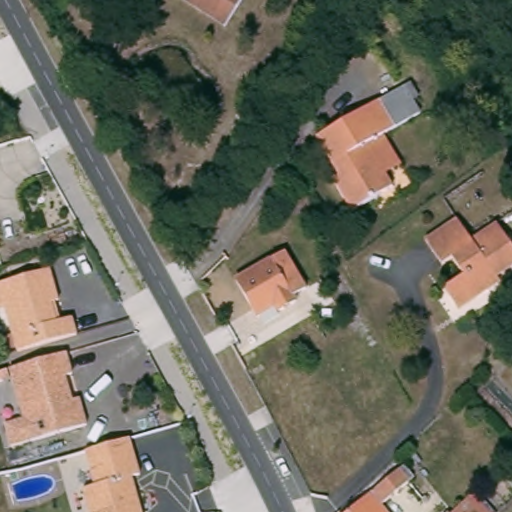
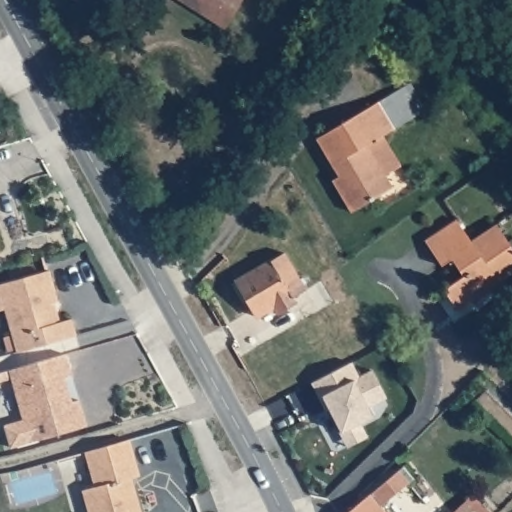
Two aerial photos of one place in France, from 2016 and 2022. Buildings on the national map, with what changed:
unchanged [(222,31),(172,0),(242,0),(222,31)]
unchanged [(387,132),(363,147),(388,185),(347,214),(326,181),(335,174),(314,142),(368,105),(387,132)]
unchanged [(489,288),(445,316),(431,295),(450,282),(439,266),(427,273),(409,247),(451,219),(467,241),(485,230),(494,225),(512,248),(512,260),(509,262),(485,281),(489,288)]
unchanged [(2,251),(0,251),(0,245),(2,251)]
unchanged [(301,281),(287,292),(293,300),(275,314),(268,304),(253,315),(233,281),(277,252),(301,281)]
unchanged [(44,275),(50,306),(42,307),(45,321),(61,317),(67,335),(9,350),(0,313),(0,287),(44,275)]
unchanged [(2,373),(65,356),(68,377),(60,381),(66,402),(76,400),(82,427),(23,443),(2,373)]
new [(330,407),(327,409),(321,397),(313,382),(353,362),(360,376),(373,369),(387,397),(369,406),(374,415),(361,421),(368,435),(348,445),(340,430),(341,429),(330,407)]
unchanged [(79,453),(126,441),(136,477),(125,481),(135,512),(85,512),(79,491),(90,486),(79,453)]
unchanged [(379,507),(383,512),(347,512),(397,465),(409,478),(379,507)]
unchanged [(493,512),(462,512),(478,497),(493,512)]

